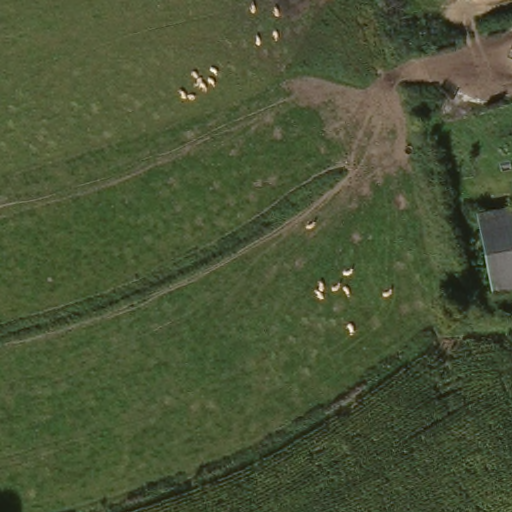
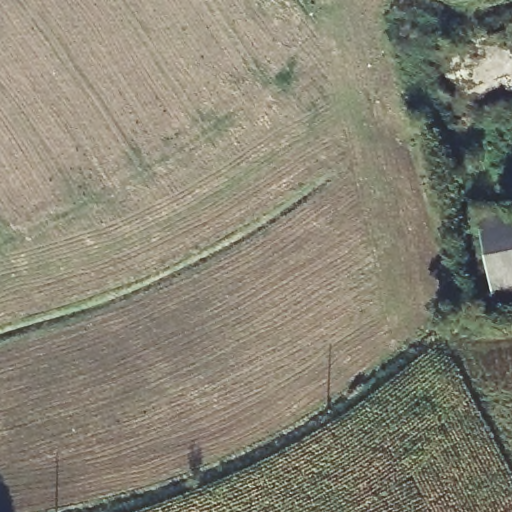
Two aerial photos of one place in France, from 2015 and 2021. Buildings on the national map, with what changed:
unchanged [(485,276),(473,244),(512,230),(512,310),(499,315),(485,276)]

